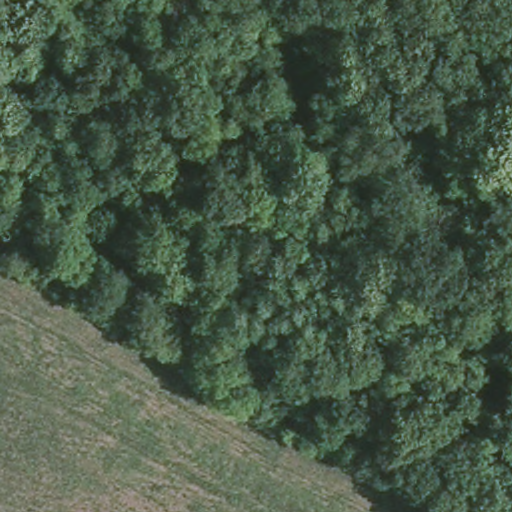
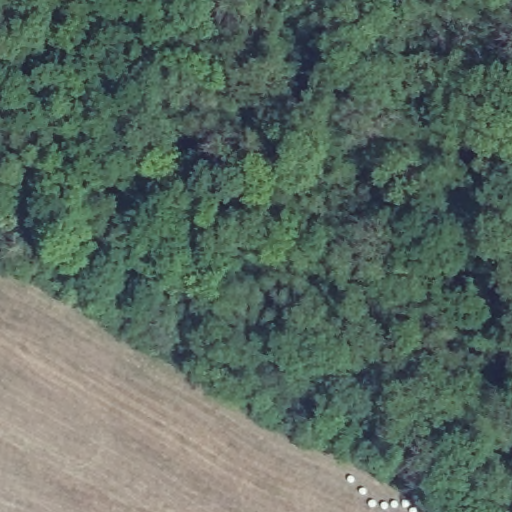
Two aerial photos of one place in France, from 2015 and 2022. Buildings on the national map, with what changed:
unchanged [(112,206),(102,242),(69,233),(73,199),(112,206)]

